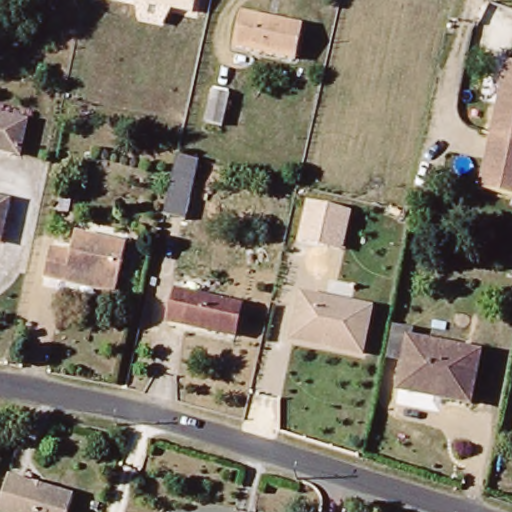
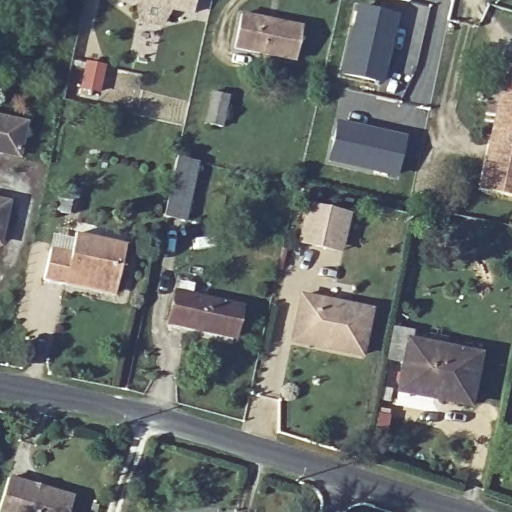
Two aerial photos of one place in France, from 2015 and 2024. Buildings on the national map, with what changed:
unchanged [(195,0),(192,13),(137,0),(195,0)]
new [(383,84),(341,75),(357,6),(399,14),(383,84)]
unchanged [(237,48),(245,16),(297,28),(290,61),(237,48)]
unchanged [(512,194),(482,188),(507,62),(512,63),(512,194)]
unchanged [(221,125),(204,121),(212,88),(228,91),(221,125)]
unchanged [(24,125),(17,155),(0,151),(0,120),(24,125)]
new [(398,176),(328,161),(337,120),(407,136),(398,176)]
unchanged [(200,161),(184,221),(166,217),(179,155),(200,161)]
unchanged [(352,212),(343,252),(298,242),(307,202),(352,212)]
unchanged [(40,276),(47,245),(67,251),(74,230),(125,243),(115,280),(112,292),(65,282),(40,276)]
unchanged [(288,342),(300,290),(375,308),(363,359),(288,342)]
unchanged [(236,306),(229,334),(173,320),(180,292),(236,306)]
unchanged [(396,392),(402,362),(387,360),(393,332),(406,335),(404,345),(480,362),(470,409),(396,392)]
unchanged [(71,512),(0,512),(7,488),(72,508),(71,512)]

